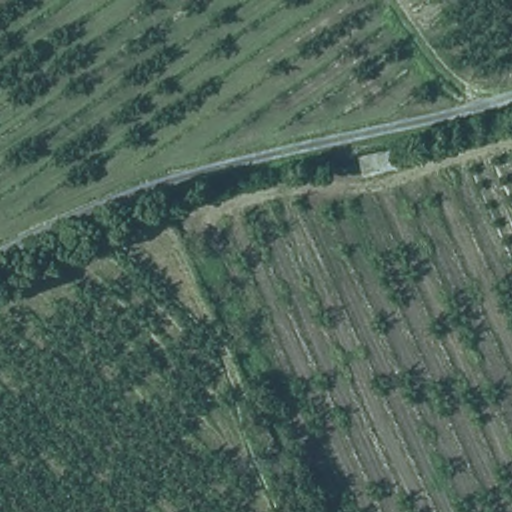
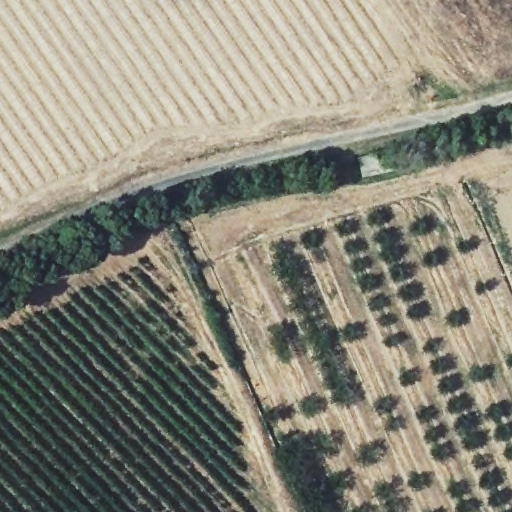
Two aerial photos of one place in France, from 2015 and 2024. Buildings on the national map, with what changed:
unchanged [(364,160),(402,154),(403,169),(364,174),(364,160)]

